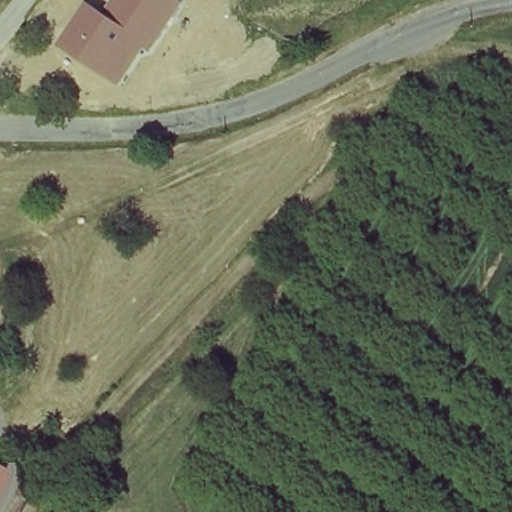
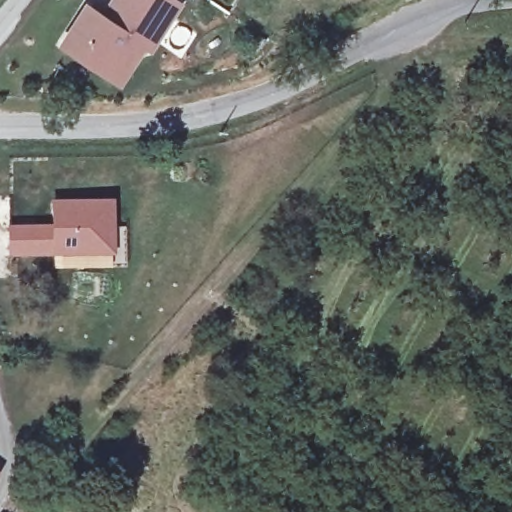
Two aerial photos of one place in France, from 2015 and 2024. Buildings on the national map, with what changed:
unchanged [(148,53),(142,49),(117,86),(57,47),(87,1),(103,12),(111,0),(177,0),(184,4),(148,53)]
new [(51,222),(50,199),(112,199),(112,226),(122,226),(123,266),(72,266),(72,254),(6,255),(6,225),(51,222)]

